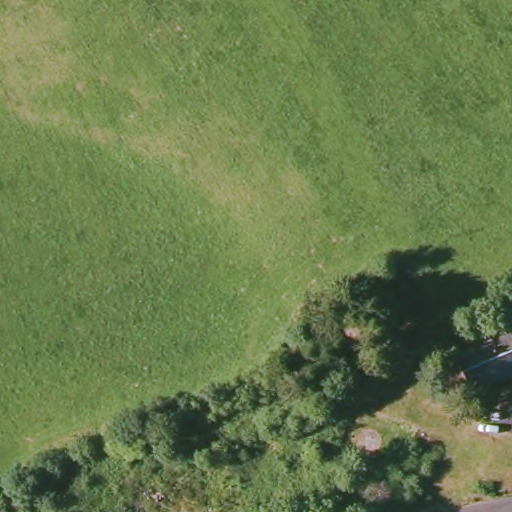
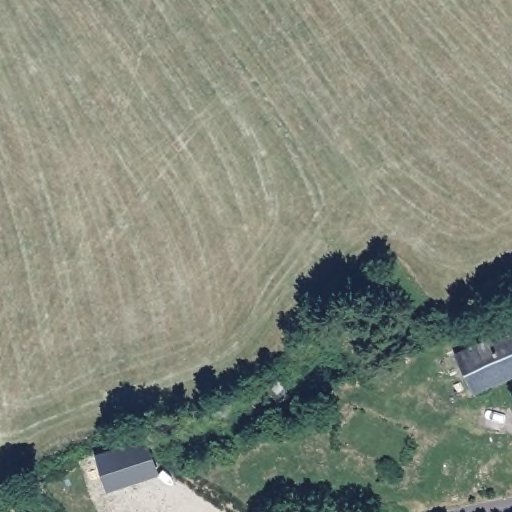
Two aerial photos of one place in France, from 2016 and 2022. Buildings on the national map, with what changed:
unchanged [(472,392),(456,355),(512,331),(512,375),(472,392)]
new [(95,454),(147,438),(159,475),(107,491),(95,454)]

